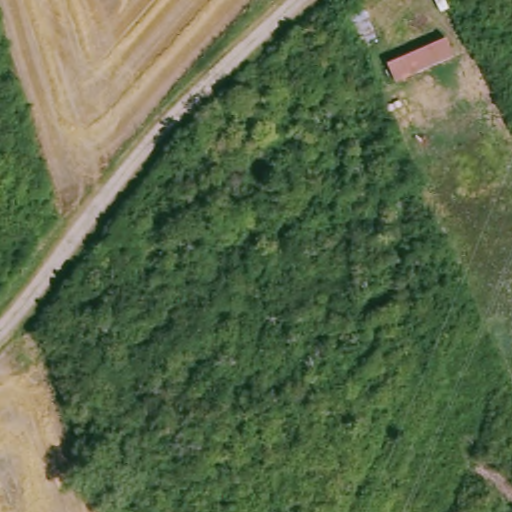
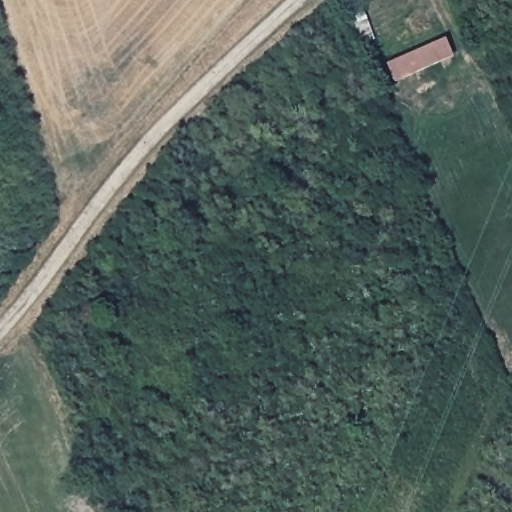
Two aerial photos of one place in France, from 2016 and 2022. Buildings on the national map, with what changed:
unchanged [(392,83),(385,63),(445,35),(457,58),(392,83)]

